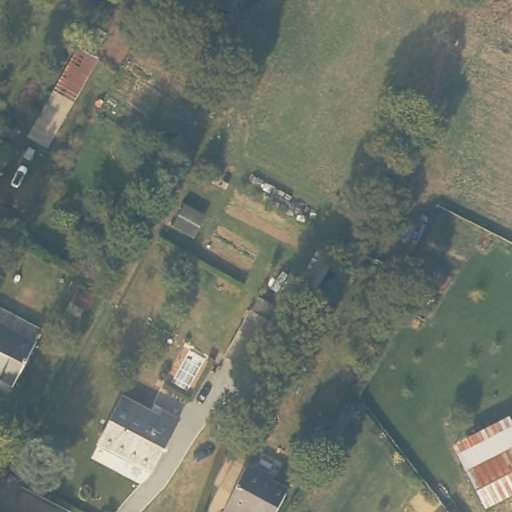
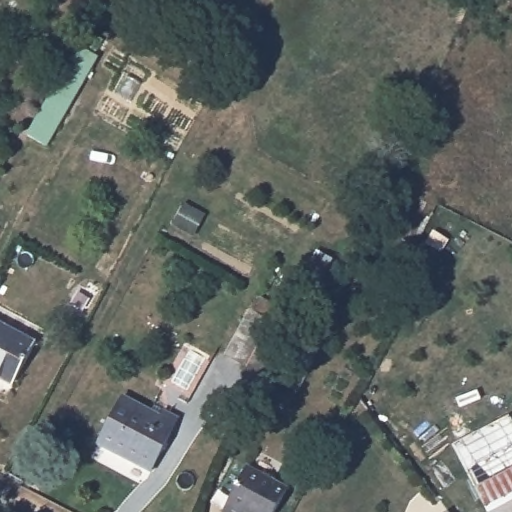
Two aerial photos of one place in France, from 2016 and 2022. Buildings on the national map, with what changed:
unchanged [(89,71),(64,116),(43,104),(49,92),(68,59),(89,71)]
unchanged [(226,356),(249,309),(255,295),(275,305),(279,298),(293,305),(284,325),(264,374),(226,356)]
unchanged [(13,387),(0,379),(0,325),(37,347),(13,387)]
unchanged [(164,417),(166,411),(180,417),(151,471),(100,445),(126,398),(164,417)]
unchanged [(486,506),(455,438),(512,413),(512,494),(486,506)]
unchanged [(290,484),(276,512),(257,512),(258,510),(253,507),(250,512),(233,512),(224,507),(249,461),(290,484)]
unchanged [(449,507),(453,512),(437,512),(447,504),(449,507)]

